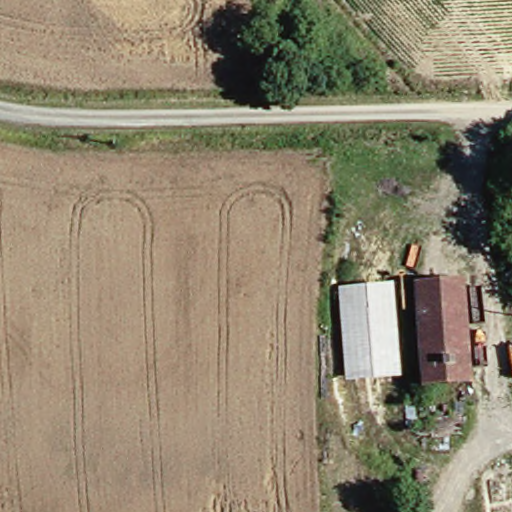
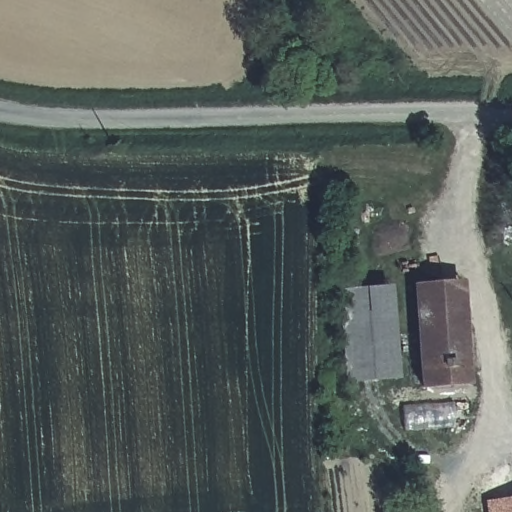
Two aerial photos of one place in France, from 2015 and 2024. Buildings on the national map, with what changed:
unchanged [(475,382),(445,383),(428,383),(426,283),(472,282),(473,299),(475,382)]
unchanged [(347,380),(345,290),(397,288),(398,378),(347,380)]
new [(512,499),(512,512),(485,512),(483,503),(512,499)]

